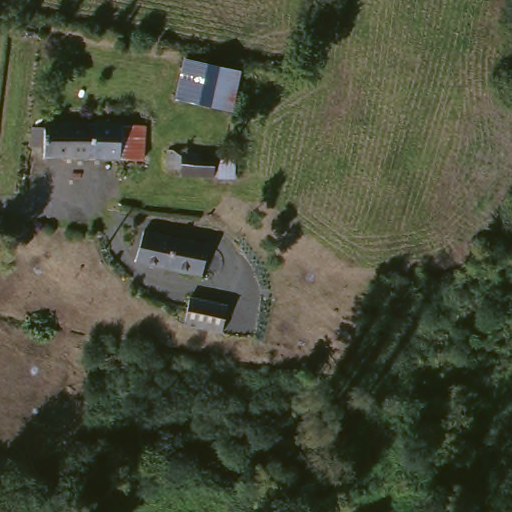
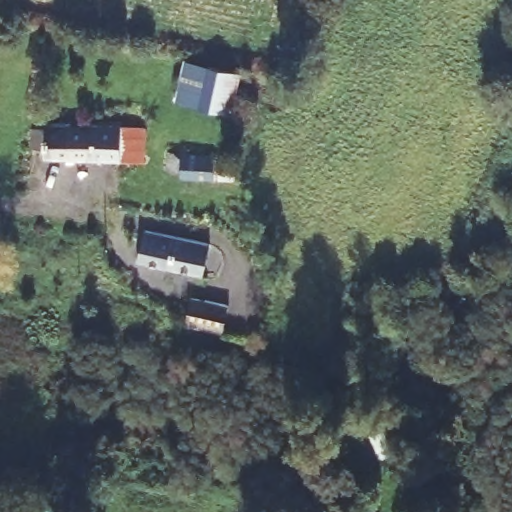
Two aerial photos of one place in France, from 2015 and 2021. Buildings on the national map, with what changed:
unchanged [(178,63),(233,74),(226,117),(170,106),(178,63)]
unchanged [(147,163),(125,161),(51,156),(52,146),(38,146),(38,144),(39,127),(54,128),(54,122),(128,128),(150,129),(147,163)]
unchanged [(229,154),(228,177),(197,175),(197,171),(182,170),(183,151),(229,154)]
unchanged [(145,232),(211,250),(204,280),(137,262),(145,232)]
unchanged [(179,302),(189,303),(189,300),(229,307),(224,332),(176,324),(179,302)]

